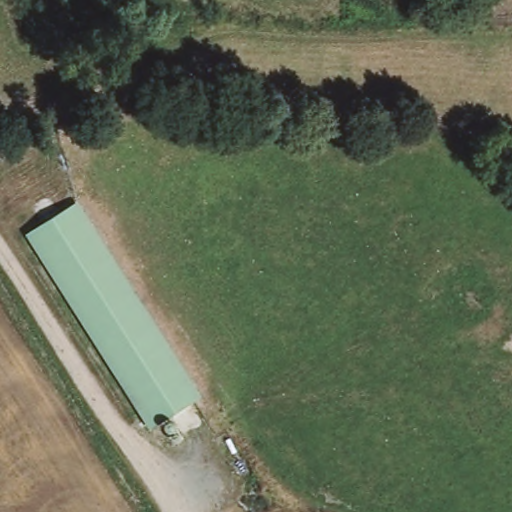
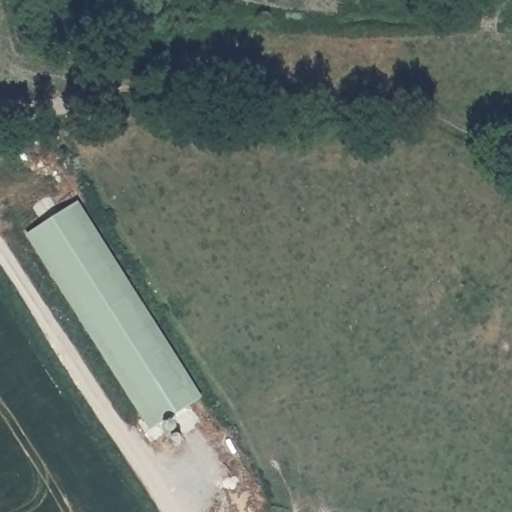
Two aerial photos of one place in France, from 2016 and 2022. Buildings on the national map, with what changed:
unchanged [(68,211),(114,277),(195,402),(157,426),(87,320),(30,235),(68,211)]

